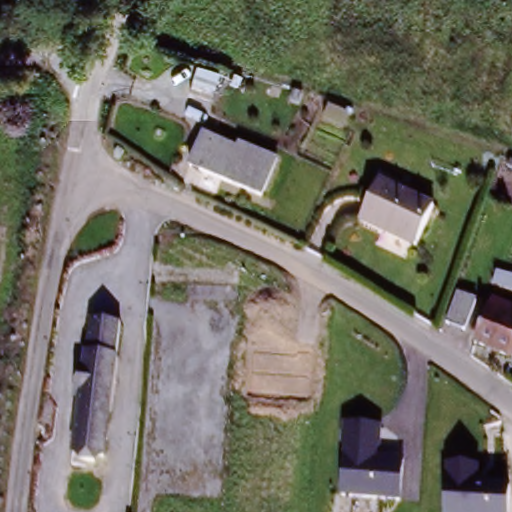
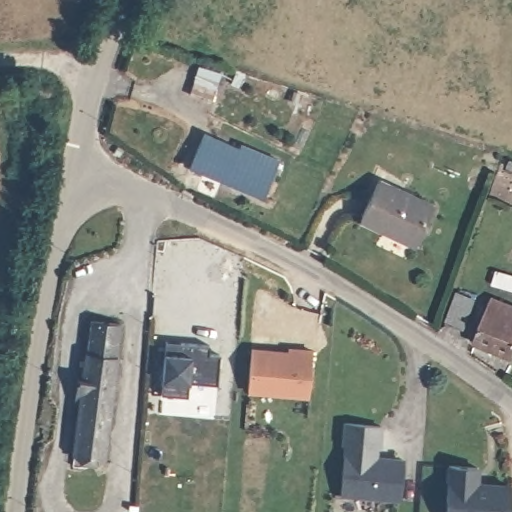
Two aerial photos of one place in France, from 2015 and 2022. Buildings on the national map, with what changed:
unchanged [(192,167),(206,134),(278,167),(264,198),(192,167)]
unchanged [(416,238),(364,210),(384,175),(435,204),(416,238)]
unchanged [(446,325),(459,296),(476,303),(464,332),(446,325)]
unchanged [(474,348),(484,304),(511,310),(508,325),(512,326),(512,357),(474,348)]
unchanged [(74,460),(94,318),(128,320),(109,462),(74,460)]
new [(168,342),(183,344),(213,347),(212,356),(223,357),(219,387),(191,383),(189,398),(163,396),(168,347),(168,342)]
new [(255,352),(299,357),(299,352),(315,354),(310,401),(251,395),(255,352)]
unchanged [(384,427),(381,457),(404,458),(401,498),(339,494),(345,422),(384,427)]
unchanged [(511,512),(443,512),(444,466),(480,467),(479,485),(512,487),(511,512)]

